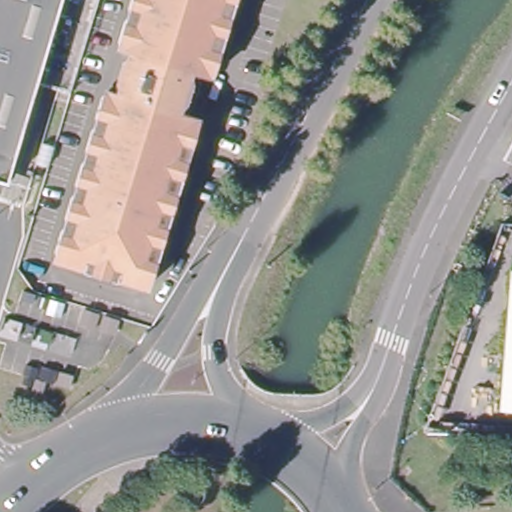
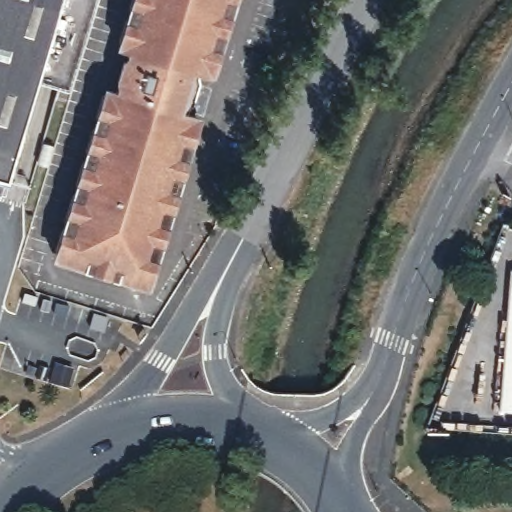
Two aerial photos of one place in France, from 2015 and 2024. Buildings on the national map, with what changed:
unchanged [(14,179),(0,175),(0,0),(62,0),(14,179)]
unchanged [(206,77),(196,74),(186,111),(195,113),(143,287),(50,260),(101,87),(110,90),(121,51),(112,47),(126,0),(229,0),(206,77)]
unchanged [(512,268),(512,407),(499,406),(510,267),(512,268)]

